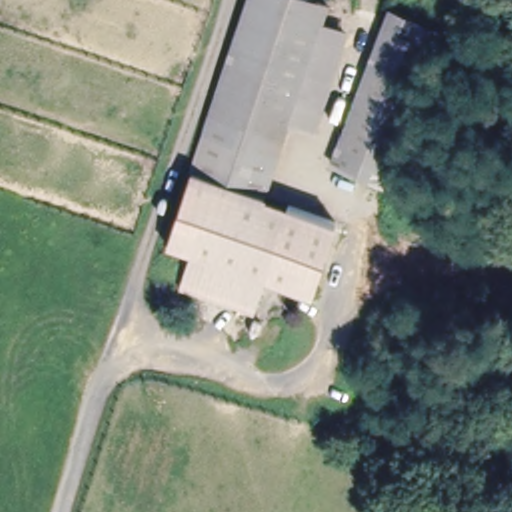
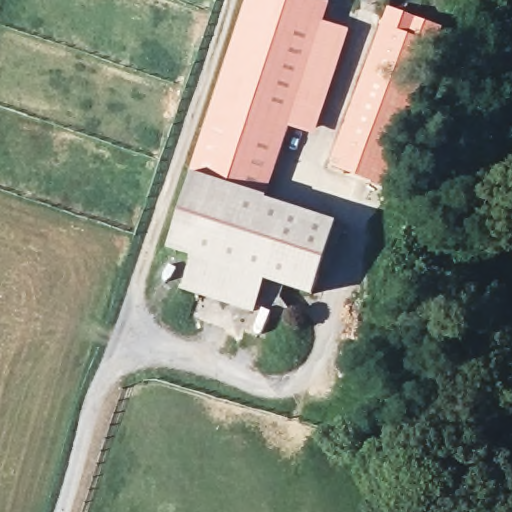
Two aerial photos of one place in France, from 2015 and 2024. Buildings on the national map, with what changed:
unchanged [(191,170),(245,0),(330,0),(325,19),(343,26),(312,136),(288,126),(266,192),(191,170)]
unchanged [(442,25),(383,185),(325,164),(387,4),(442,25)]
unchanged [(337,212),(314,296),(263,283),(254,308),(179,287),(187,256),(166,250),(191,170),(266,192),(337,212)]

